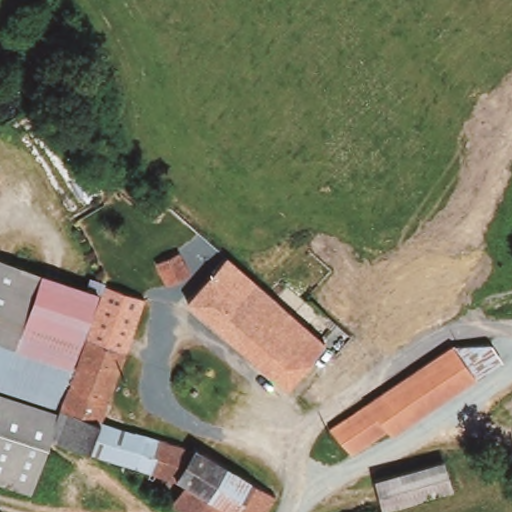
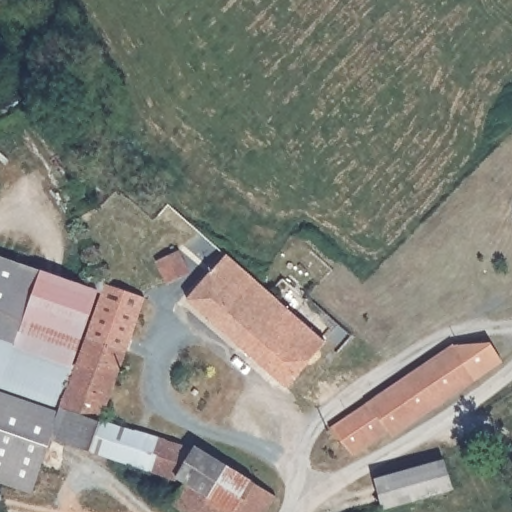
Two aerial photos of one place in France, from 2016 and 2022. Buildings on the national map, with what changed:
unchanged [(155,250),(151,246),(149,243),(148,239),(149,237),(150,235),(153,234),(156,233),(159,233),(160,234),(161,235),(163,239),(164,244),(169,241),(184,264),(162,279),(148,253),(155,250)]
unchanged [(0,327),(0,249),(103,286),(75,356),(24,336),(0,327)]
unchanged [(269,292),(274,297),(233,340),(183,292),(193,281),(199,285),(229,254),(269,292)]
unchanged [(111,283),(149,297),(101,421),(147,438),(133,472),(129,471),(89,456),(50,441),(83,357),(111,283)]
unchanged [(274,297),(303,324),(260,367),(233,340),(274,297)]
unchanged [(299,375),(284,389),(260,367),(303,324),(332,352),(305,382),(302,379),(299,375)]
unchanged [(40,466),(23,459),(0,450),(0,327),(24,336),(75,356),(83,357),(50,441),(40,466)]
unchanged [(477,381),(394,439),(391,432),(355,456),(329,428),(365,403),(451,345),(493,343),(504,362),(477,381)]
unchanged [(184,492),(178,490),(193,454),(198,446),(225,466),(202,504),(212,512),(176,512),(173,509),(184,492)]
unchanged [(0,481),(0,450),(23,459),(40,466),(29,494),(0,481)]
unchanged [(375,484),(439,460),(448,486),(384,510),(375,484)]
unchanged [(225,466),(278,505),(273,512),(212,512),(202,504),(225,466)]

